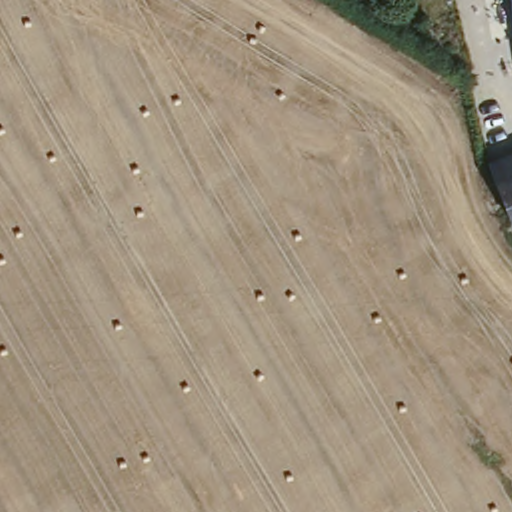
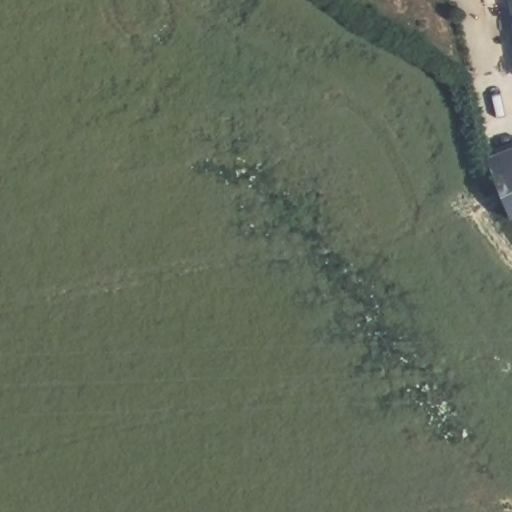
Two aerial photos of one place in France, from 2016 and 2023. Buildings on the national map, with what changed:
unchanged [(512,0),(512,40),(506,0),(512,0)]
unchanged [(512,221),(483,156),(512,143),(512,221)]

